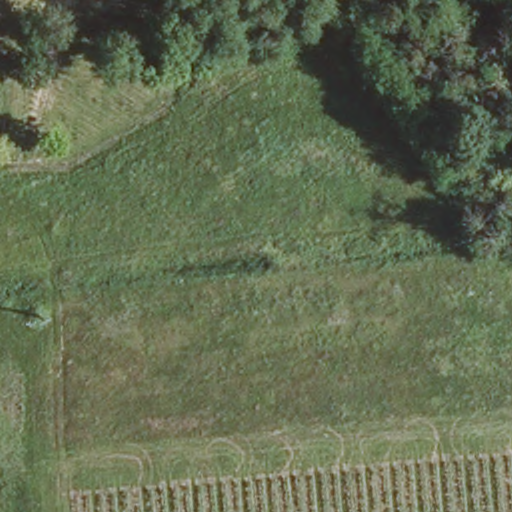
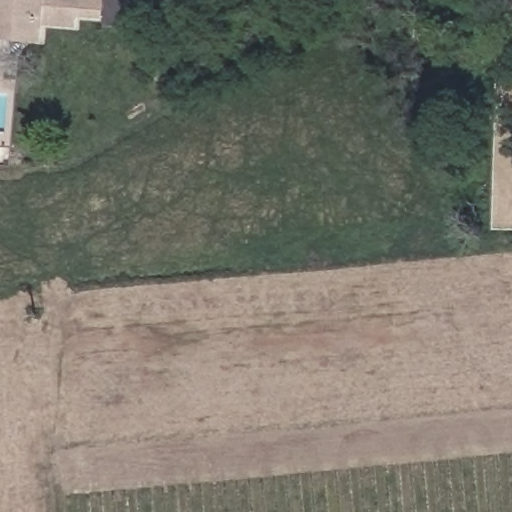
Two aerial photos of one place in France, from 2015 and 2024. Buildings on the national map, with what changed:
new [(0,40),(0,0),(105,0),(104,19),(81,17),(81,28),(46,26),(44,43),(0,40)]

